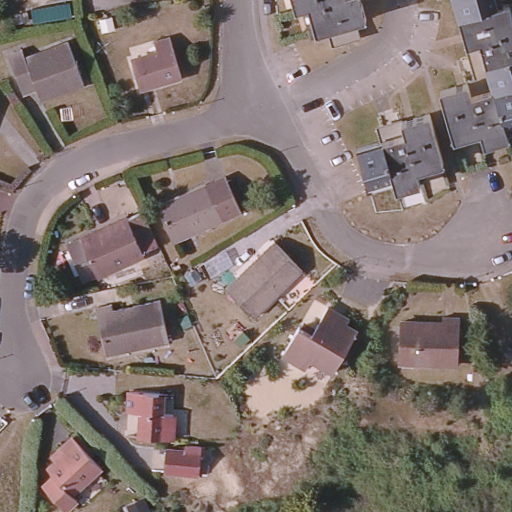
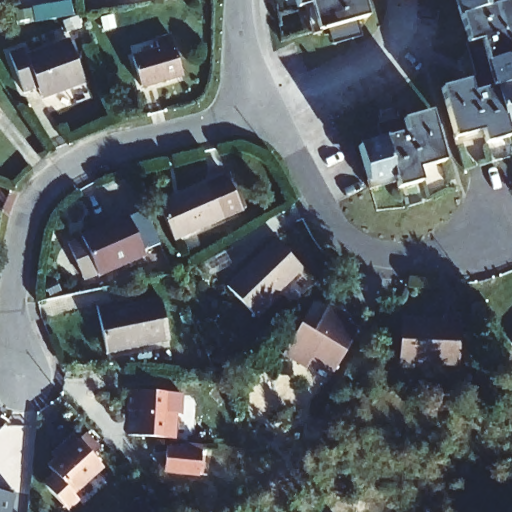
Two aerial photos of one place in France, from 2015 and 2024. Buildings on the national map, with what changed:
unchanged [(366,17),(355,21),(359,35),(333,42),(329,29),(316,32),(308,6),(296,9),(293,0),(361,0),(366,17)]
unchanged [(497,5),(509,2),(512,11),(512,124),(505,126),(509,137),(484,144),(482,132),(454,140),(440,90),(477,79),(454,0),(496,0),(497,5)]
unchanged [(155,44),(170,39),(180,76),(141,88),(132,59),(157,52),(155,44)]
unchanged [(40,99),(37,89),(23,94),(8,53),(21,48),(26,58),(68,43),(83,82),(40,99)]
unchanged [(71,106),(72,117),(61,118),(59,107),(71,106)]
unchanged [(448,163),(422,171),(425,183),(402,190),(399,178),(374,185),(363,146),(387,139),(384,126),(433,113),(448,163)]
unchanged [(173,240),(158,204),(206,183),(225,174),(228,180),(241,209),(173,240)]
unchanged [(66,241),(82,234),(126,215),(126,217),(143,210),(156,243),(141,249),(143,252),(98,272),(82,279),(66,241)]
unchanged [(253,317),(226,288),(274,241),(303,270),(253,317)]
unchanged [(173,343),(111,355),(101,307),(118,304),(118,309),(164,300),(173,343)]
unchanged [(349,320),(346,325),(356,332),(332,373),(311,361),(306,370),(283,356),(301,326),(313,334),(329,308),(349,320)]
unchanged [(440,317),(457,317),(454,364),(401,362),(403,321),(417,322),(428,322),(439,323),(440,317)]
unchanged [(512,331),(512,342),(507,336),(512,331)]
unchanged [(164,440),(134,437),(136,412),(123,410),(125,389),(155,392),(154,411),(167,413),(164,440)]
unchanged [(103,466),(73,493),(76,498),(65,509),(43,484),(55,473),(48,465),(64,450),(60,445),(73,433),(103,466)]
unchanged [(178,451),(181,450),(183,449),(183,447),(184,446),(195,448),(195,458),(198,458),(196,475),(159,471),(160,449),(178,451)]
new [(16,499),(13,512),(0,512),(0,495),(16,499)]

